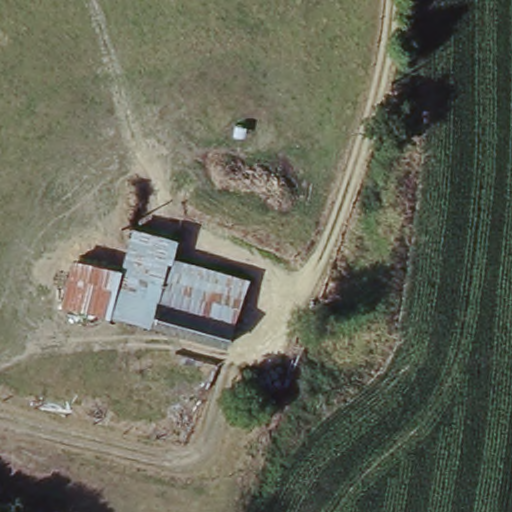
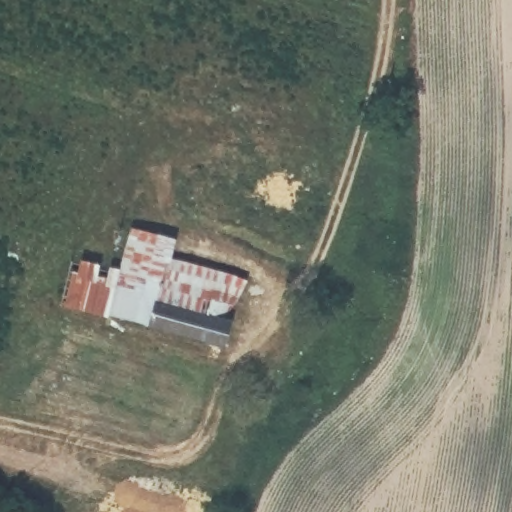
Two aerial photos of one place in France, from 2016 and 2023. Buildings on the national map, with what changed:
unchanged [(173,237),(169,254),(158,298),(153,321),(115,311),(138,227),(173,237)]
unchanged [(247,275),(234,318),(158,298),(169,254),(247,275)]
unchanged [(112,320),(61,306),(74,259),(126,272),(115,311),(112,320)]
unchanged [(151,324),(153,321),(158,298),(234,318),(226,343),(163,327),(151,324)]

